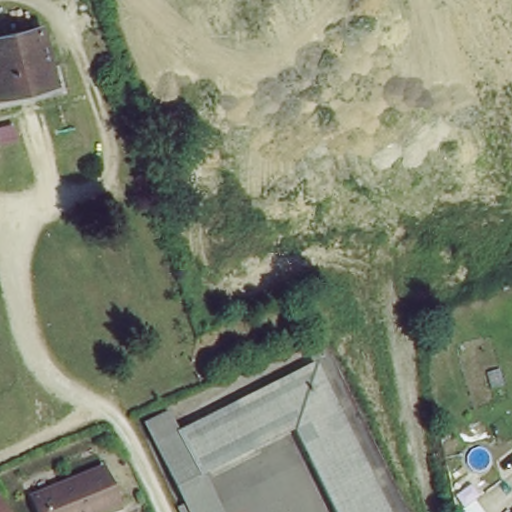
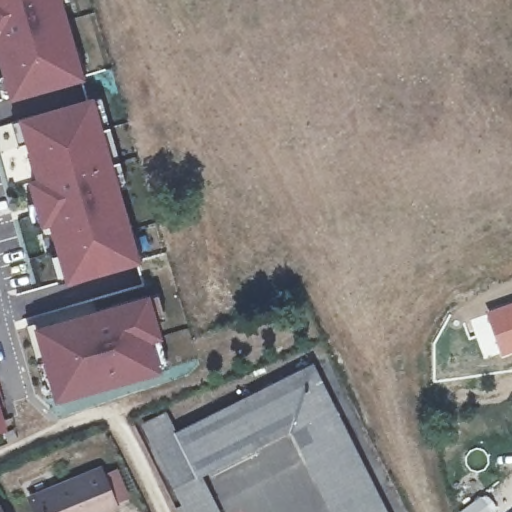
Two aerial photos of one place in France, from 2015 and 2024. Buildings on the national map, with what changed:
new [(10,99),(0,66),(0,0),(60,0),(83,78),(10,99)]
demolished [(40,33),(54,86),(0,99),(0,42),(40,33)]
new [(65,283),(46,225),(39,227),(26,180),(34,178),(18,118),(92,97),(139,261),(65,283)]
new [(10,121),(20,150),(0,154),(0,124),(10,121)]
new [(160,372),(55,401),(34,328),(147,295),(161,337),(151,341),(151,344),(160,372)]
new [(501,356),(485,311),(512,301),(512,352),(501,356)]
unchanged [(152,449),(311,369),(383,512),(331,512),(290,432),(199,477),(201,485),(175,496),(152,449)]
new [(3,430),(0,430),(0,420),(3,430)]
unchanged [(113,509),(105,512),(32,512),(27,498),(97,469),(113,509)]
unchanged [(183,512),(175,496),(201,485),(215,512),(183,512)]

